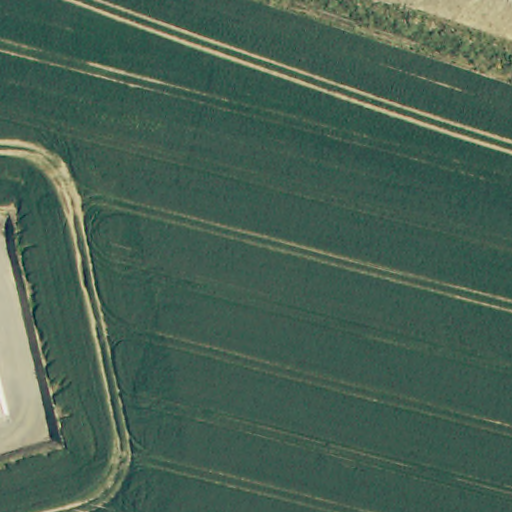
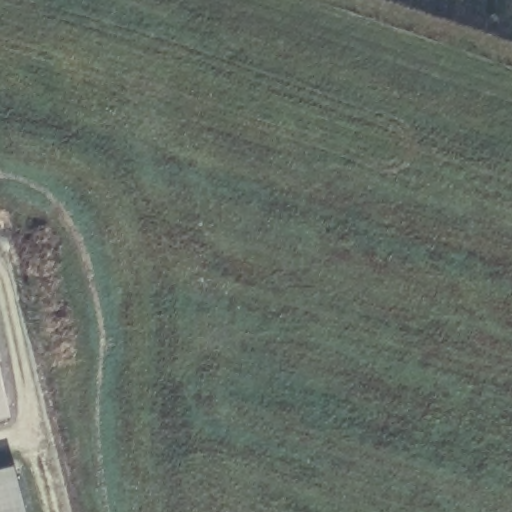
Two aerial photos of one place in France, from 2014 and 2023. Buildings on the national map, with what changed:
unchanged [(0,416),(0,382),(8,414),(0,416)]
new [(0,471),(15,467),(26,512),(0,512),(0,471)]

